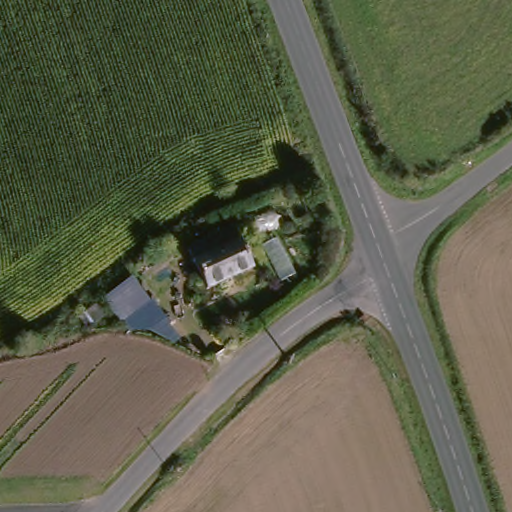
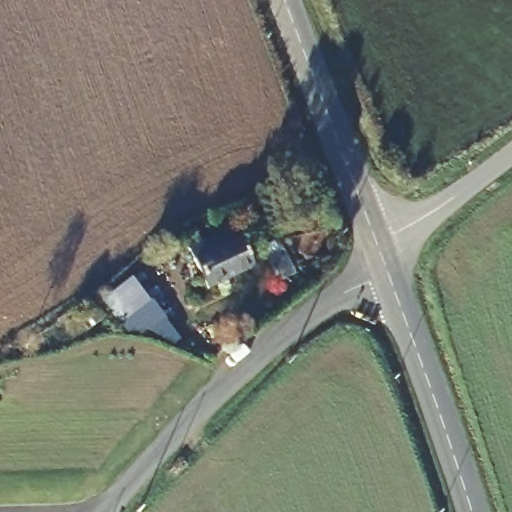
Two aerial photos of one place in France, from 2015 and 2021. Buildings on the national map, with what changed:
unchanged [(226,229),(248,263),(216,288),(191,251),(226,229)]
unchanged [(149,298),(125,317),(104,298),(126,276),(149,298)]

